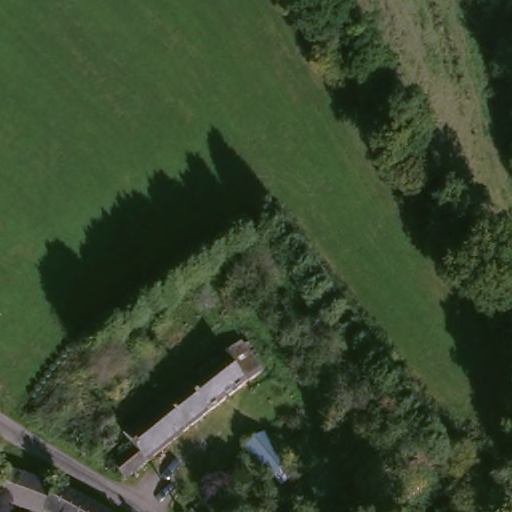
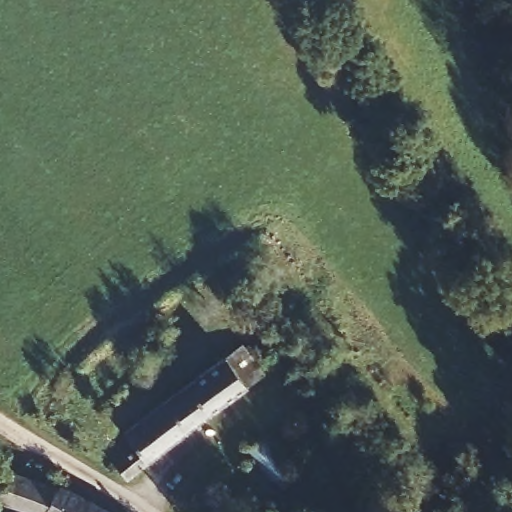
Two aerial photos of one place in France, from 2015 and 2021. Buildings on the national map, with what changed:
unchanged [(252,344),(271,371),(129,467),(117,450),(133,440),(126,426),(252,344)]
unchanged [(273,486),(247,452),(267,440),(291,474),(273,486)]
unchanged [(0,489),(5,466),(57,478),(43,506),(0,494),(0,489)]
unchanged [(57,478),(58,475),(121,512),(55,512),(43,506),(57,478)]

